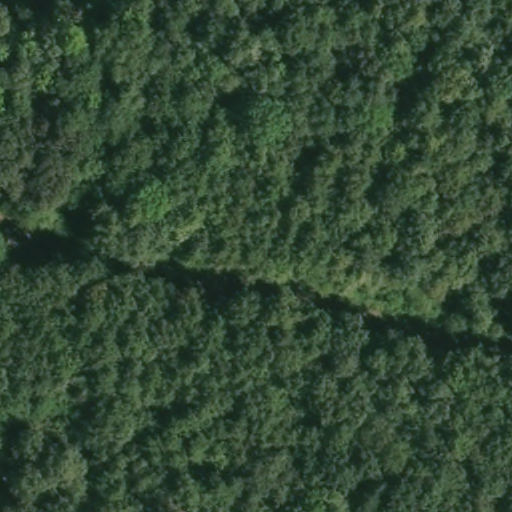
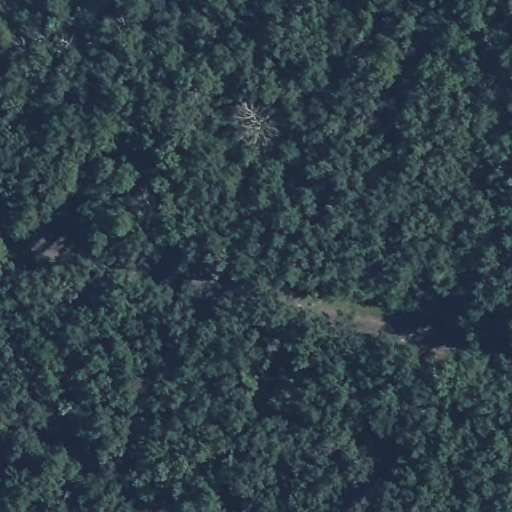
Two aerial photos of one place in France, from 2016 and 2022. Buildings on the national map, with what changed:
[]

